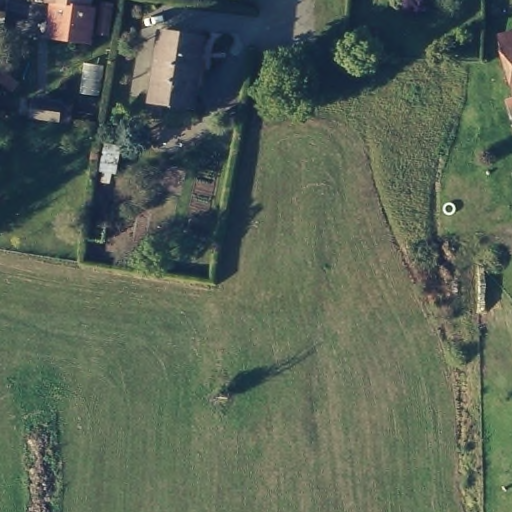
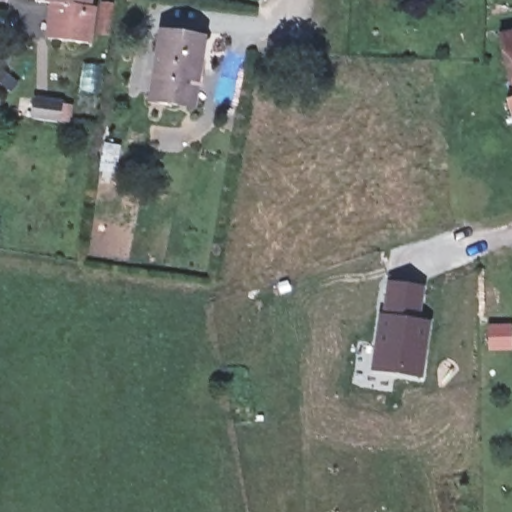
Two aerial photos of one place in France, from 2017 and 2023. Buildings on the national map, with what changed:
unchanged [(94,8),(89,44),(50,39),(52,19),(55,19),(57,4),(52,3),(52,0),(90,0),(89,7),(94,8)]
unchanged [(512,26),(512,75),(499,30),(512,26)]
unchanged [(152,96),(162,32),(204,38),(194,108),(169,104),(151,101),(152,96)]
unchanged [(512,91),(510,87),(512,86),(512,112),(507,93),(512,91)]
unchanged [(57,122),(32,119),(35,99),(60,103),(60,104),(72,106),(70,123),(57,122)]
unchanged [(115,173),(102,171),(106,145),(120,148),(115,173)]
new [(416,378),(369,370),(379,316),(382,316),(389,283),(421,289),(415,322),(426,325),(422,341),(420,355),(416,378)]
new [(512,327),(512,349),(490,350),(489,327),(512,327)]

